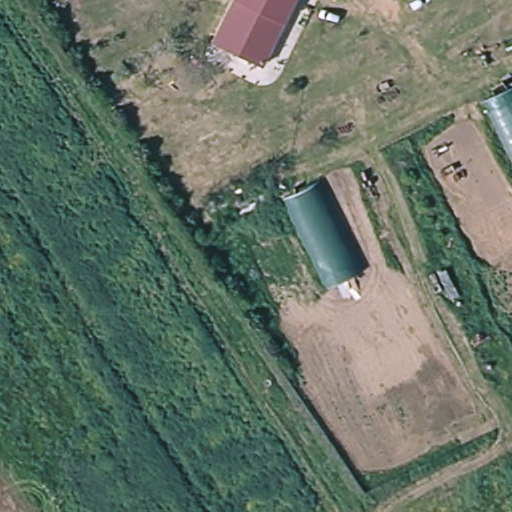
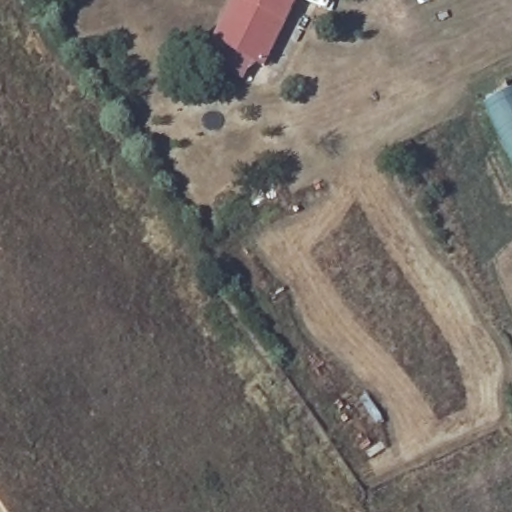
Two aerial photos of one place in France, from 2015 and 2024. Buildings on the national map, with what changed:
unchanged [(300,0),(268,66),(220,42),(240,0),(300,0)]
unchanged [(487,102),(512,89),(512,148),(487,102)]
demolished [(332,291),(283,199),(323,179),(369,276),(332,291)]

